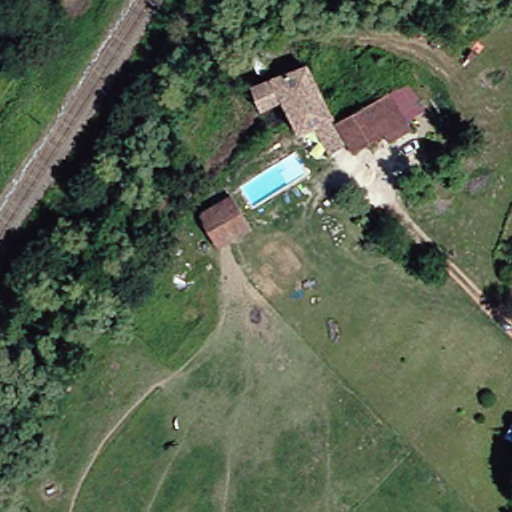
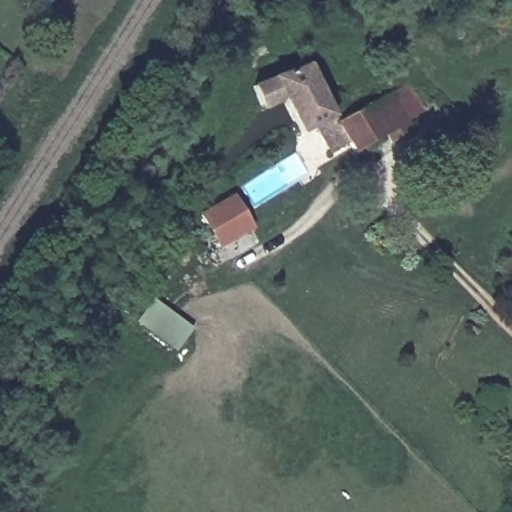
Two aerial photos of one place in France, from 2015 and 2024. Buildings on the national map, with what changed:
unchanged [(329,121),(298,139),(280,105),(258,116),(248,91),(303,71),(329,121)]
unchanged [(409,135),(387,148),(382,140),(351,158),(334,128),(387,98),(409,135)]
unchanged [(245,217),(253,230),(220,248),(202,216),(235,197),(245,217)]
new [(194,330),(178,354),(136,325),(152,301),(194,330)]

